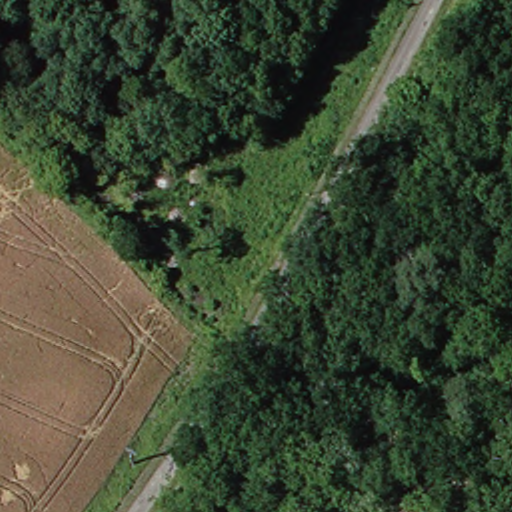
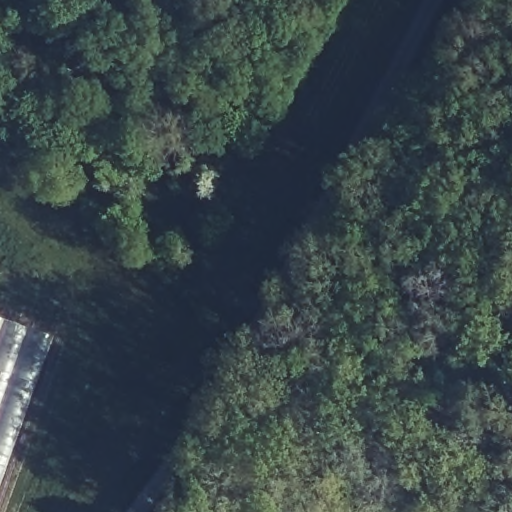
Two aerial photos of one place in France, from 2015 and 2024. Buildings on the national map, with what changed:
new [(50,337),(0,488),(0,320),(50,337)]

